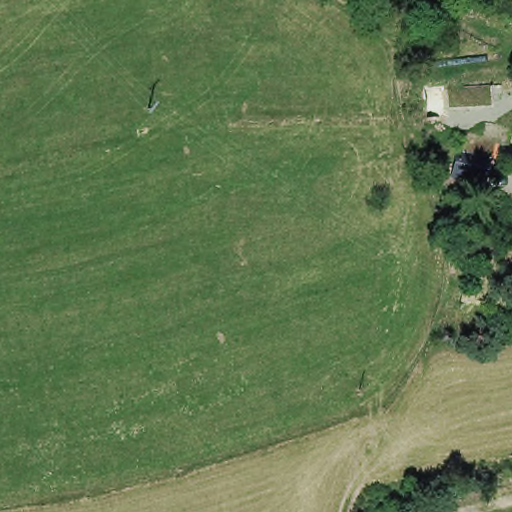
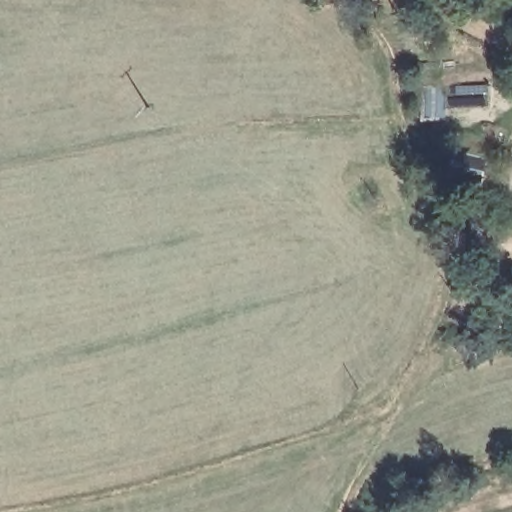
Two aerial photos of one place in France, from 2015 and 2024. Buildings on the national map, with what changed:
unchanged [(480,144),(474,160),(453,156),(459,138),(480,144)]

